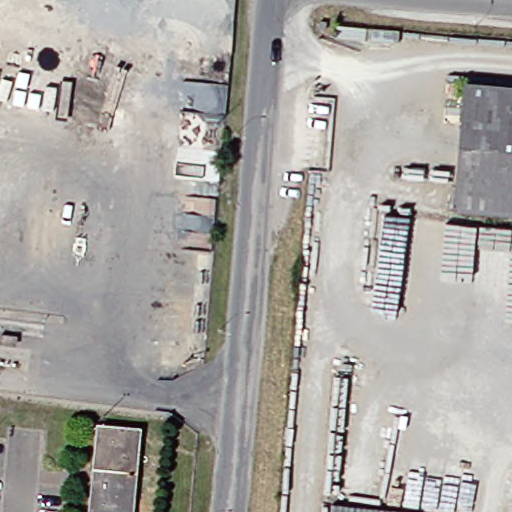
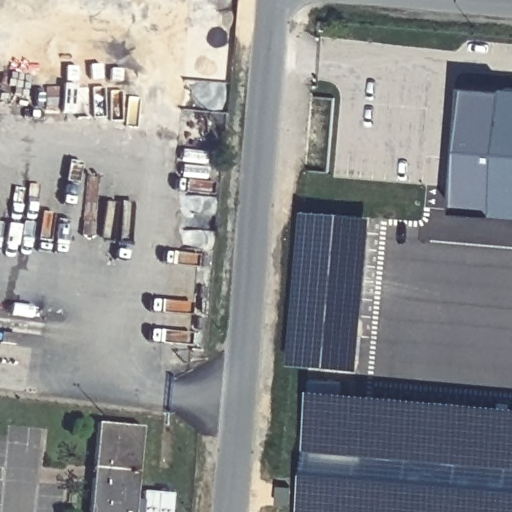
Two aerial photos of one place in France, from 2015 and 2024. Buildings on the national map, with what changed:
unchanged [(512,91),(512,217),(450,212),(459,87),(512,91)]
new [(305,208),(375,215),(361,367),(291,363),(305,208)]
new [(512,404),(512,512),(301,512),(314,386),(512,404)]
unchanged [(129,512),(83,512),(91,425),(136,431),(129,512)]
new [(172,495),(170,512),(139,512),(141,491),(172,495)]

